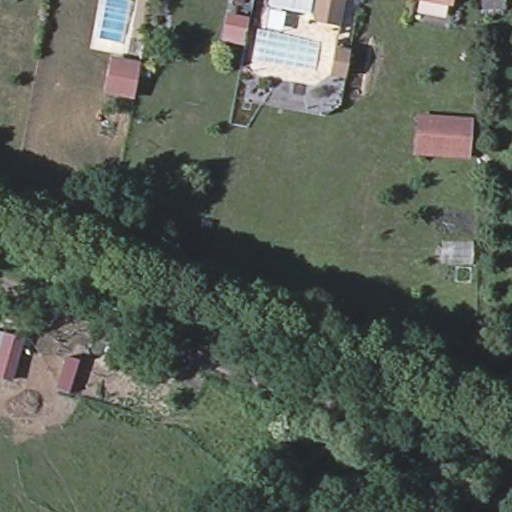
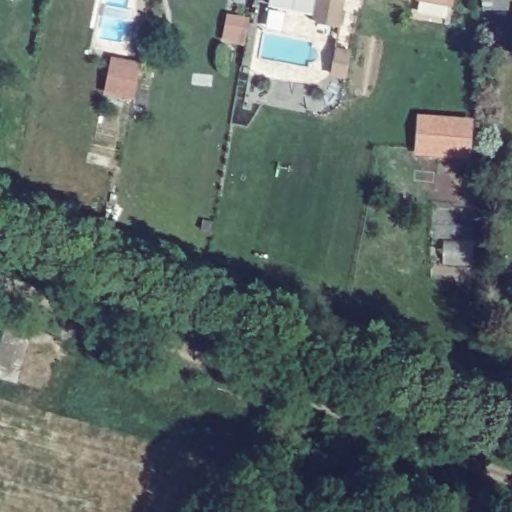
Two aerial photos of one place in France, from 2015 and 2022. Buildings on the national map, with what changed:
unchanged [(311,19),(307,12),(307,10),(267,2),(265,0),(338,0),(333,23),(311,19)]
unchanged [(424,0),(460,0),(459,7),(424,0)]
unchanged [(483,9),(483,0),(510,0),(510,11),(483,9)]
unchanged [(340,74),(327,71),(332,46),(345,49),(340,74)]
unchanged [(140,62),(135,99),(105,94),(112,58),(140,62)]
unchanged [(476,117),(472,160),(416,154),(419,114),(476,117)]
unchanged [(22,340),(10,381),(0,378),(0,332),(5,333),(22,340)]
unchanged [(76,358),(65,392),(55,390),(66,356),(76,358)]

